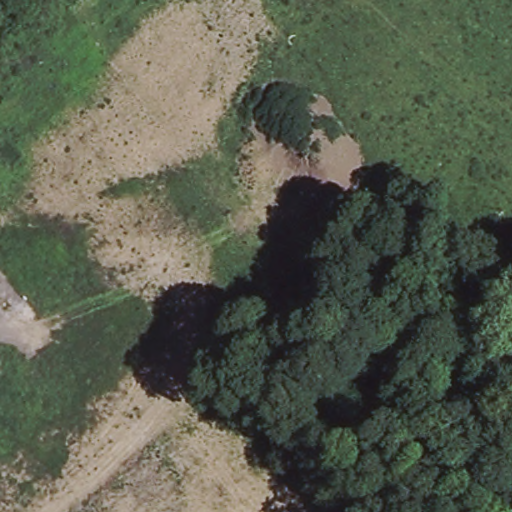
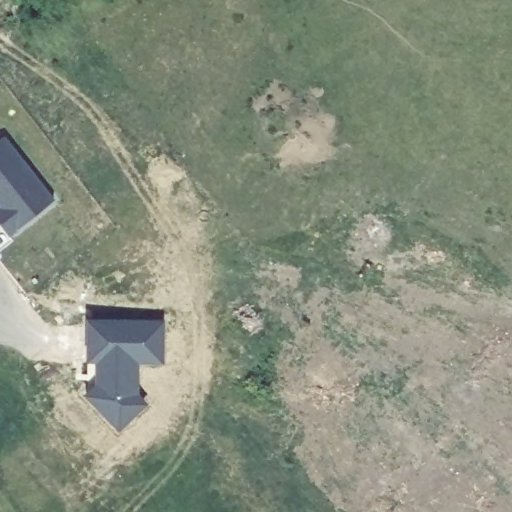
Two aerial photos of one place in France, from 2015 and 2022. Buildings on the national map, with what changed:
new [(5,138),(54,201),(10,237),(0,223),(0,142),(5,138)]
new [(165,323),(165,364),(139,363),(140,395),(148,405),(120,430),(85,396),(96,386),(96,362),(88,361),(88,321),(165,323)]
demolished [(107,512),(87,512),(102,498),(111,508),(107,512)]

